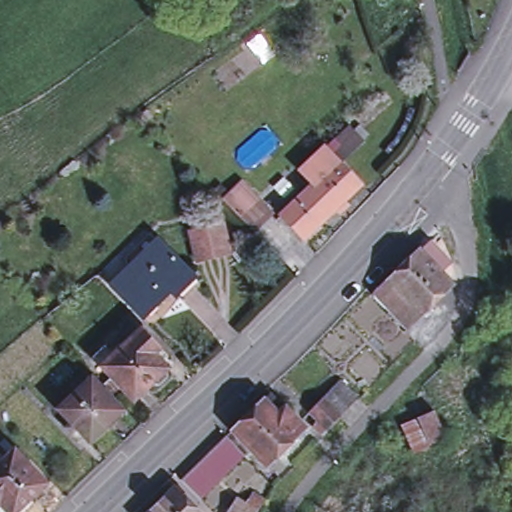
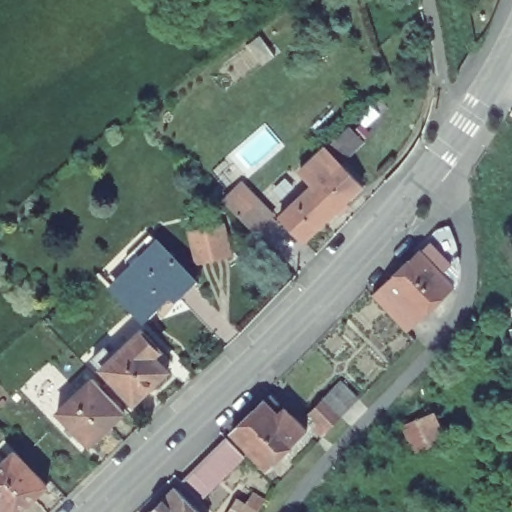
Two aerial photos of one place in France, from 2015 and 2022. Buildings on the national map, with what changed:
unchanged [(326,148),(363,187),(347,203),(352,207),(342,216),(337,211),(305,241),(282,216),(313,186),(301,172),(326,148)]
unchanged [(273,216),(255,234),(242,220),(260,203),(273,216)]
unchanged [(197,232),(195,223),(224,216),(225,218),(226,225),(228,225),(235,254),(203,262),(198,241),(196,233),(197,232)]
unchanged [(138,254),(156,236),(178,258),(197,277),(180,294),(174,289),(146,316),(118,287),(145,261),(138,254)]
unchanged [(427,256),(435,249),(448,264),(441,271),(455,286),(407,331),(373,295),(421,250),(427,256)]
unchanged [(106,348),(115,358),(143,331),(169,358),(163,363),(171,371),(168,373),(169,380),(160,388),(153,387),(135,404),(94,360),(106,348)]
unchanged [(92,380),(125,414),(91,446),(77,432),(72,436),(67,430),(71,426),(58,412),(92,380)]
unchanged [(360,399),(325,436),(315,427),(320,422),(310,412),(341,381),(360,399)]
unchanged [(308,430),(268,469),(232,431),(271,393),(308,430)]
unchanged [(430,415),(440,439),(423,446),(411,424),(430,415)]
unchanged [(245,457),(201,501),(181,482),(226,437),(245,457)]
unchanged [(17,512),(10,512),(0,502),(0,503),(0,462),(15,446),(48,480),(17,512)]
unchanged [(151,512),(176,487),(200,512),(151,512)]
unchanged [(253,488),(265,495),(256,512),(227,512),(237,493),(247,499),(253,488)]

